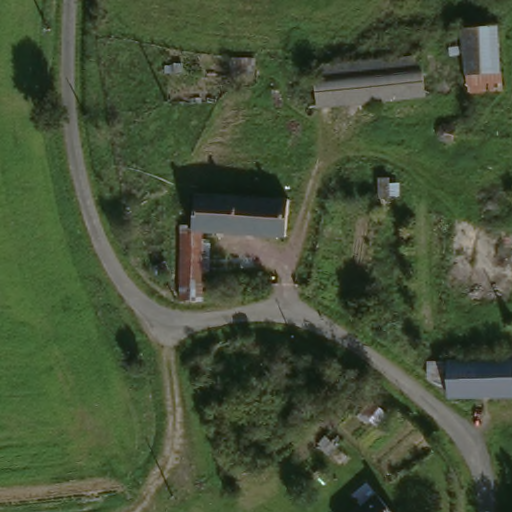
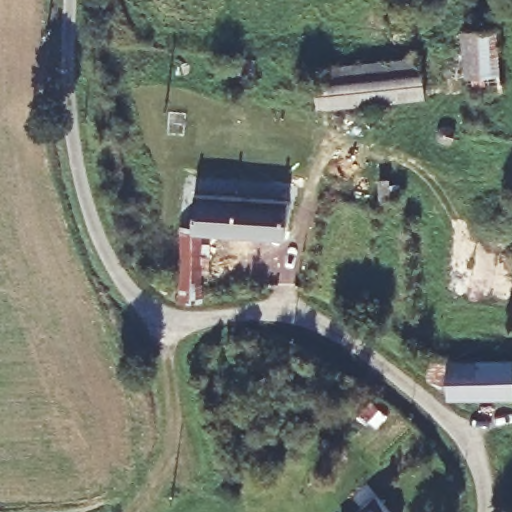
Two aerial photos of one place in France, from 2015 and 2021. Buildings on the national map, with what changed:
unchanged [(494,93),(460,95),(458,62),(443,63),(442,44),(457,43),(456,30),(489,28),(494,93)]
unchanged [(418,56),(422,97),(317,108),(312,66),(418,56)]
unchanged [(258,61),(256,74),(232,70),(234,57),(258,61)]
unchanged [(451,138),(449,139),(448,140),(447,140),(446,140),(444,140),(443,140),(441,140),(440,139),(439,139),(438,138),(437,136),(436,135),(436,134),(436,132),(436,131),(436,130),(436,128),(437,127),(437,126),(438,125),(440,124),(441,123),(442,123),(443,123),(445,122),(446,123),(448,123),(449,124),(450,124),(451,125),(452,127),(453,128),(453,129),(453,130),(454,132),(453,133),(453,135),(452,136),(452,137),(451,138)]
unchanged [(176,232),(187,232),(189,200),(282,205),(280,241),(195,237),(194,249),(204,249),(203,276),(196,275),(195,305),(183,305),(175,306),(176,232)]
unchanged [(442,386),(426,384),(424,363),(512,363),(512,401),(442,400),(442,386)]
unchanged [(355,512),(372,497),(385,512),(355,512)]

